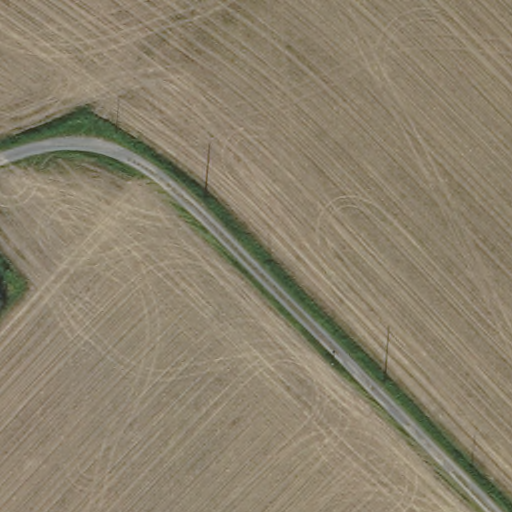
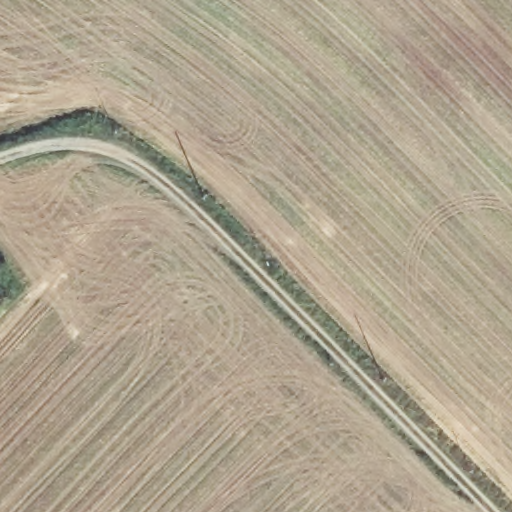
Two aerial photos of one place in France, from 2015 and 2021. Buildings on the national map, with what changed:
[]

